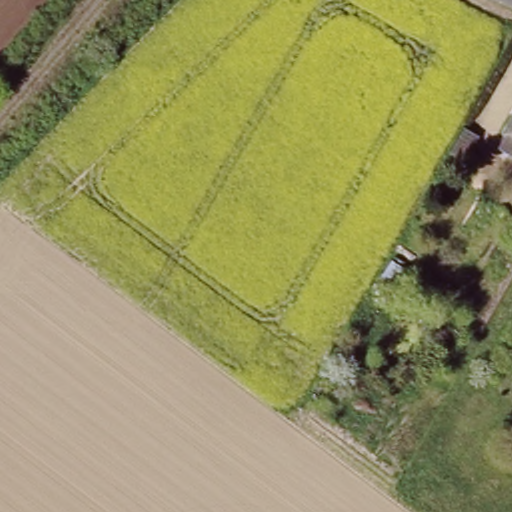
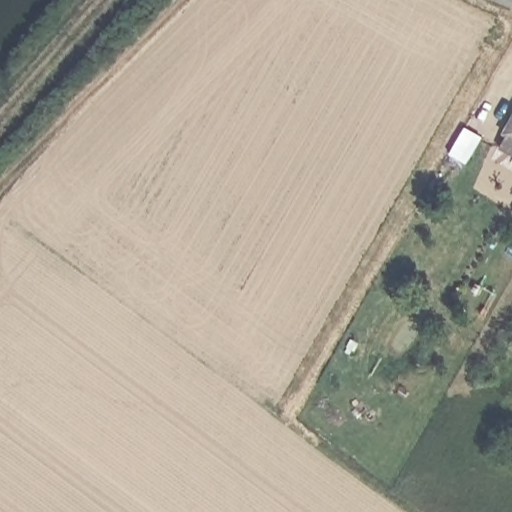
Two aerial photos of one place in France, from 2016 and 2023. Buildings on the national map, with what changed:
unchanged [(497,142),(505,130),(502,129),(512,111),(512,151),(497,142)]

